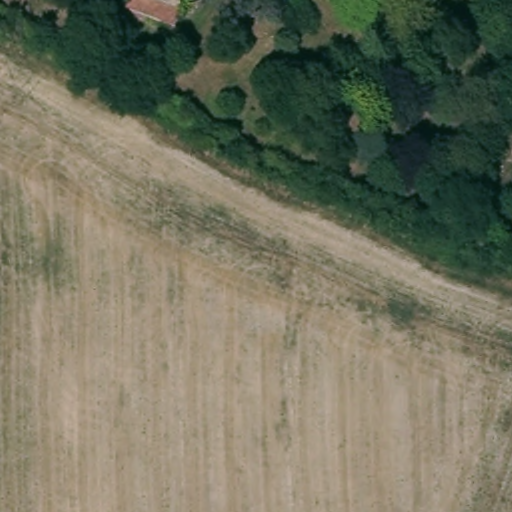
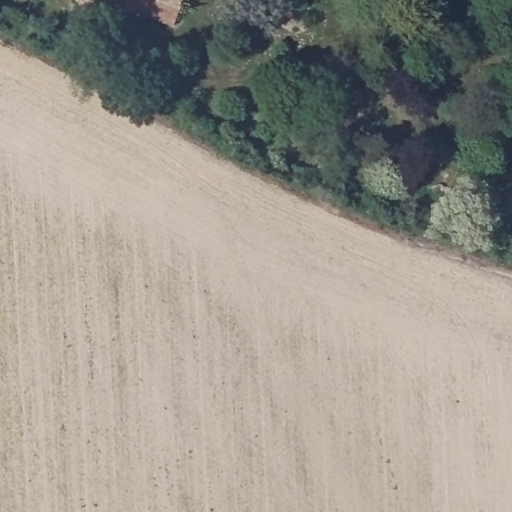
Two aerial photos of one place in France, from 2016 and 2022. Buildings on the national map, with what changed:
unchanged [(179,7),(158,0),(181,0),(179,7)]

